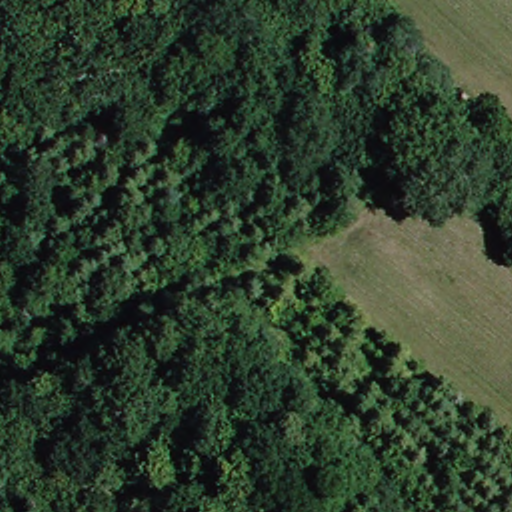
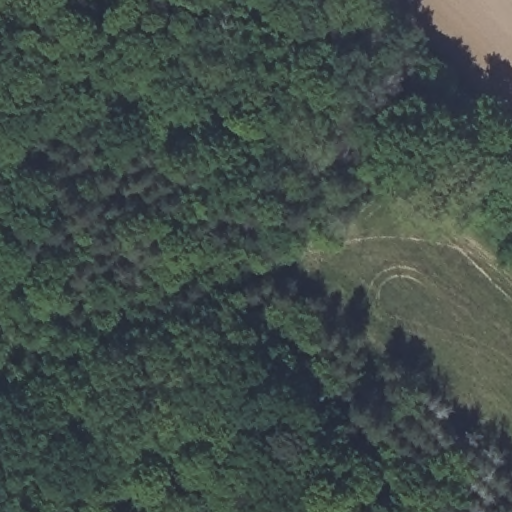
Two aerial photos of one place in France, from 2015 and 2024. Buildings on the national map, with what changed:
[]

